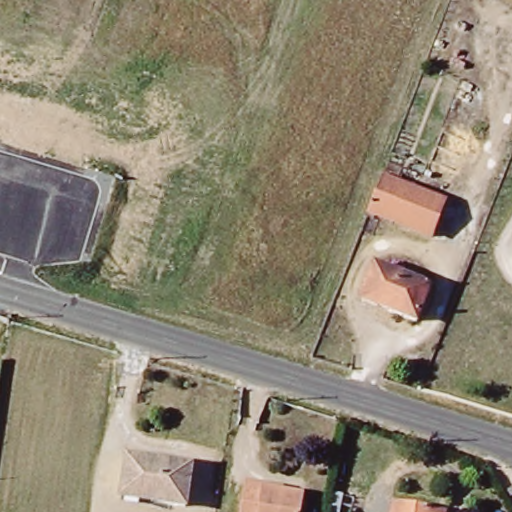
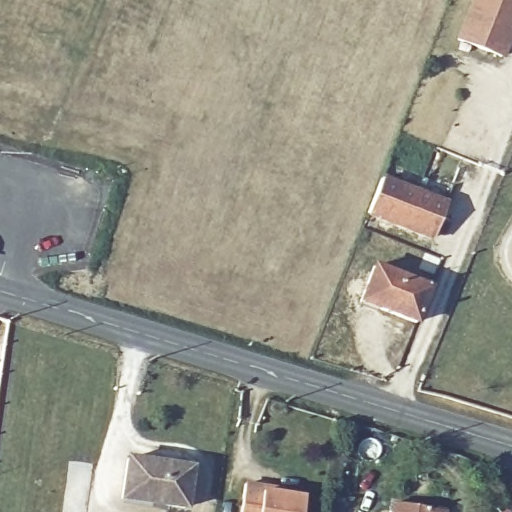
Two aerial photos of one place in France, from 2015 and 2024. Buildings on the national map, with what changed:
new [(458,41),(475,0),(512,0),(512,36),(503,59),(458,41)]
unchanged [(370,212),(382,184),(437,207),(426,233),(370,212)]
unchanged [(370,266),(428,290),(415,322),(357,299),(370,266)]
unchanged [(151,459),(185,464),(178,510),(118,501),(124,461),(150,465),(151,459)]
unchanged [(299,512),(238,512),(242,483),(260,486),(280,490),(279,496),(301,500),(299,512)]
unchanged [(432,511),(440,512),(390,512),(391,505),(432,511)]

